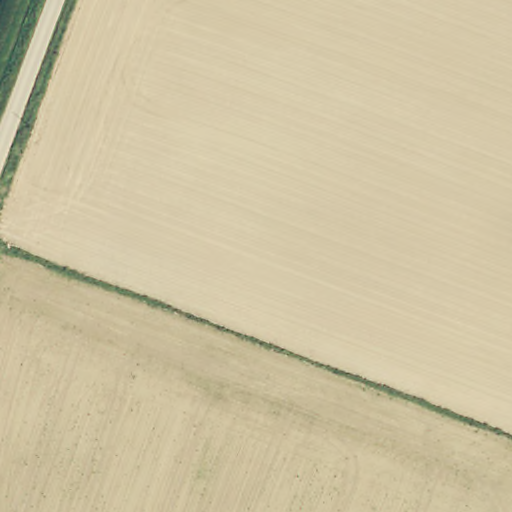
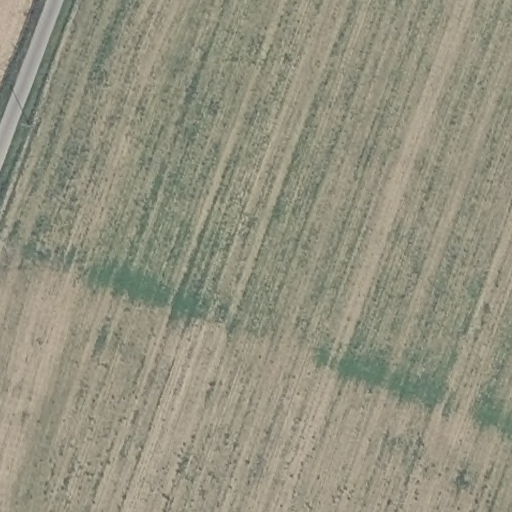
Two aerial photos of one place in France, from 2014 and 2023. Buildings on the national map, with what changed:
[]

